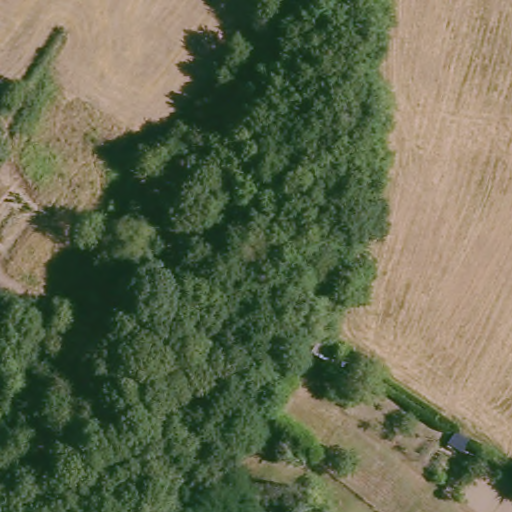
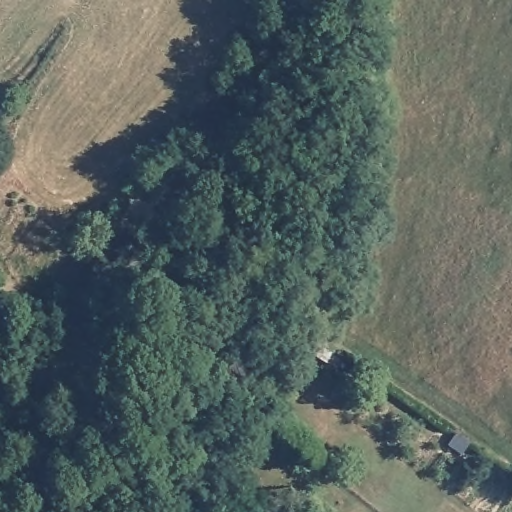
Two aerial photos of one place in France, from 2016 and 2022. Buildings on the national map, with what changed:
[]

